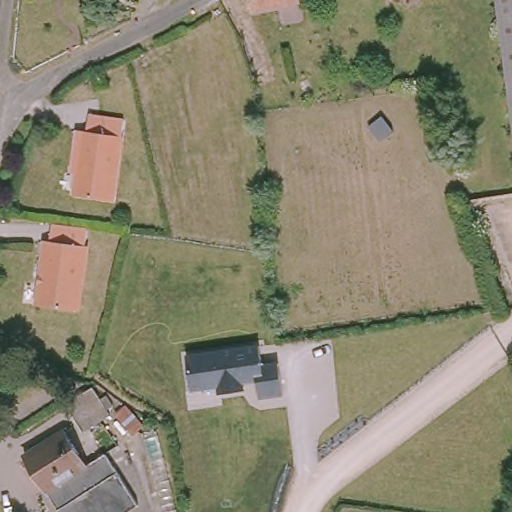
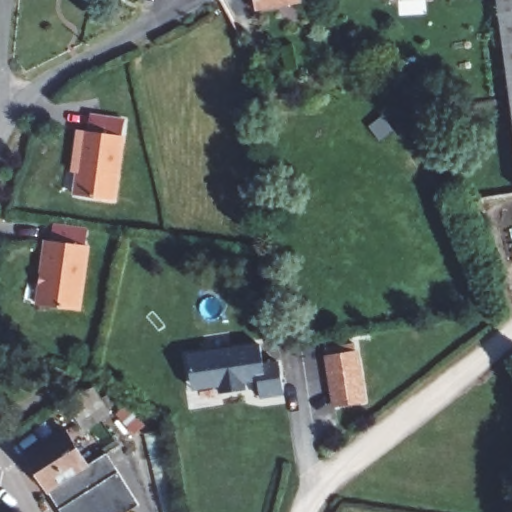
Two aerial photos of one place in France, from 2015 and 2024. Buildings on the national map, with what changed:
unchanged [(256,10),(255,0),(302,0),(303,1),(257,10),(256,10)]
unchanged [(505,0),(512,0),(512,56),(505,0)]
unchanged [(114,200),(76,195),(80,160),(76,159),(81,129),(88,130),(91,115),(126,119),(114,200)]
unchanged [(50,239),(55,239),(58,225),(89,229),(88,243),(93,244),(83,309),(41,303),(50,239)]
new [(355,350),(359,350),(366,402),(331,407),(323,355),(326,354),(324,344),(355,342),(355,350)]
unchanged [(192,392),(188,355),(260,344),(263,363),(279,361),(283,396),(261,399),(258,383),(245,385),(246,390),(218,394),(218,388),(192,392)]
unchanged [(82,427),(63,400),(88,383),(96,395),(103,391),(110,402),(104,406),(108,411),(82,427)]
unchanged [(64,433),(87,467),(46,491),(43,485),(24,458),(64,433)]
unchanged [(108,454),(143,507),(135,512),(60,512),(46,491),(87,467),(108,454)]

